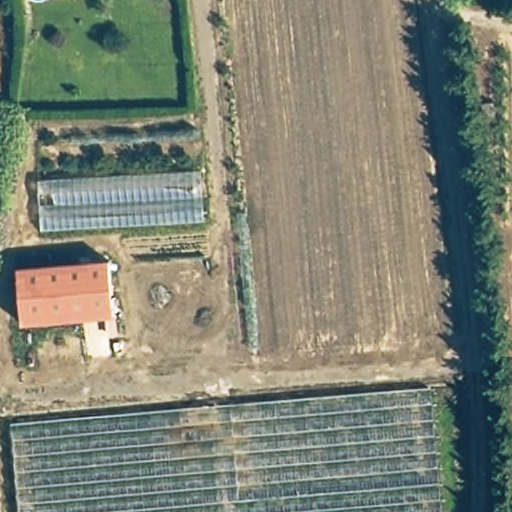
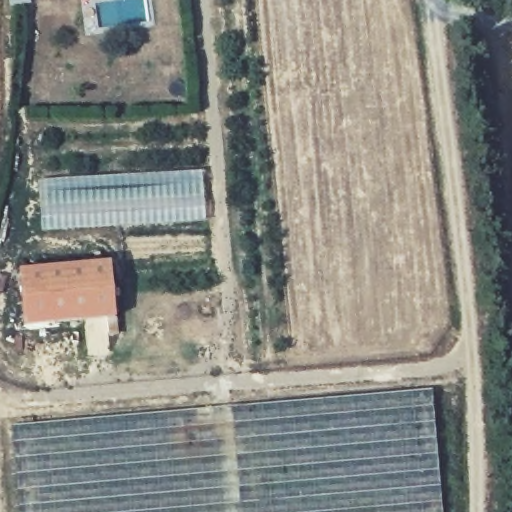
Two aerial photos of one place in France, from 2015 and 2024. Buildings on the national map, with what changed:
unchanged [(42,233),(38,181),(202,172),(205,224),(42,233)]
unchanged [(115,318),(26,326),(21,268),(110,260),(115,318)]
unchanged [(20,512),(12,426),(432,390),(443,512),(20,512)]

